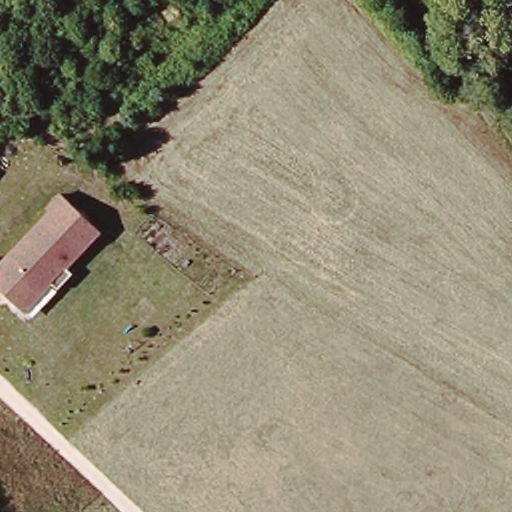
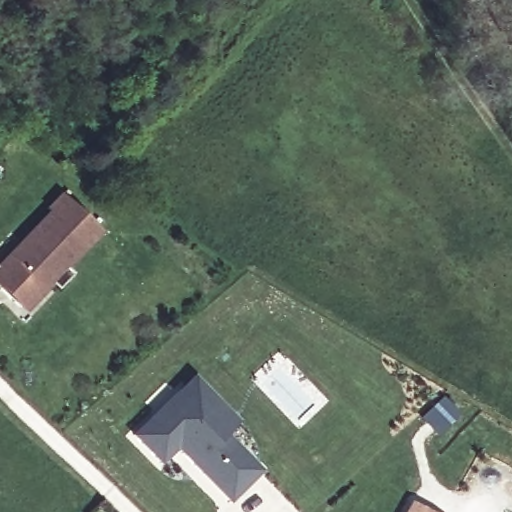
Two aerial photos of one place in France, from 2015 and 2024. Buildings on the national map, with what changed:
unchanged [(0,260),(44,212),(45,204),(59,191),(102,228),(69,265),(73,270),(58,286),(52,281),(26,311),(0,288),(0,260)]
new [(225,433),(263,470),(230,503),(176,449),(160,465),(132,435),(192,375),(238,421),(225,433)]
unchanged [(403,512),(409,500),(433,512),(403,512)]

